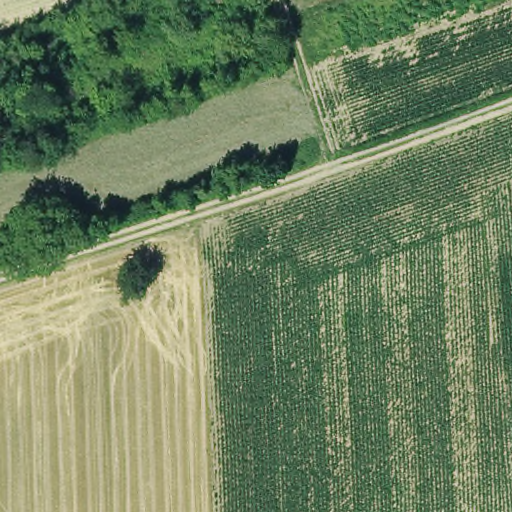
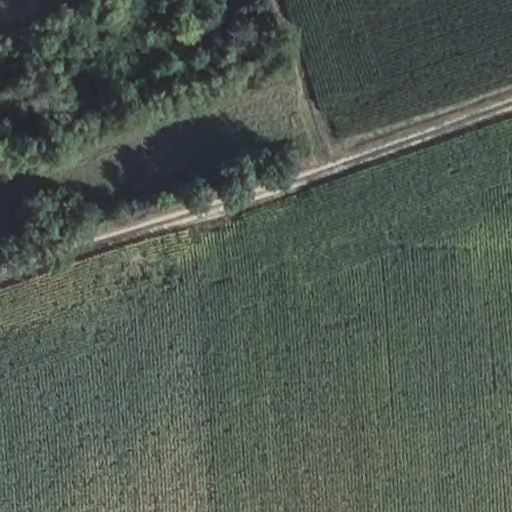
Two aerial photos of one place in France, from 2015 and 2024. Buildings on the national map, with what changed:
unchanged [(76,76),(113,62),(128,99),(90,114),(76,76)]

